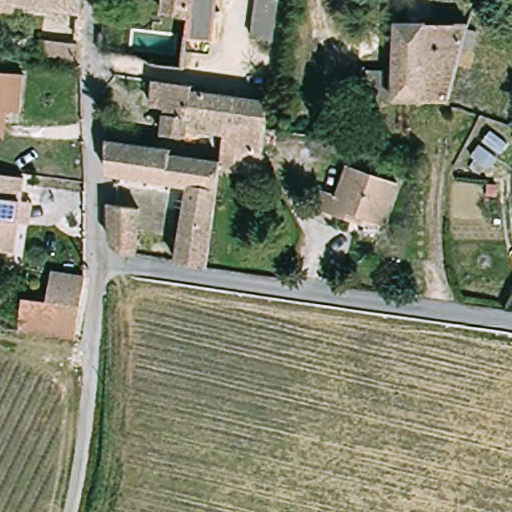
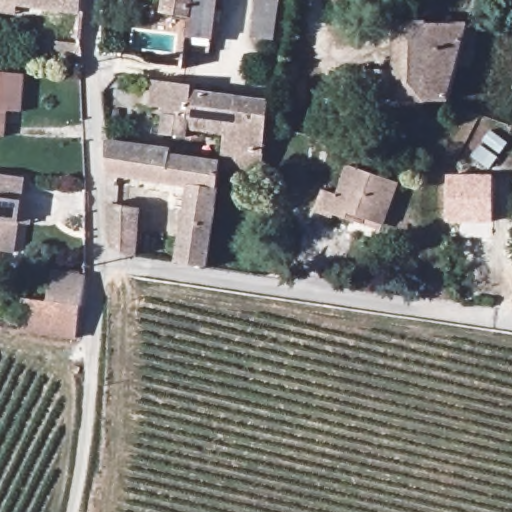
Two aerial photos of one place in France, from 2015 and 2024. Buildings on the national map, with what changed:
unchanged [(0,4),(0,0),(19,0),(19,6),(0,4)]
unchanged [(19,6),(19,0),(83,0),(82,15),(19,6)]
unchanged [(160,13),(161,0),(192,0),(189,20),(160,13)]
unchanged [(186,44),(189,20),(192,0),(216,0),(211,48),(186,44)]
unchanged [(277,0),(270,40),(250,36),(257,0),(277,0)]
unchanged [(447,101),(394,103),(395,23),(468,21),(447,101)]
unchanged [(81,64),(38,59),(39,39),(80,43),(81,64)]
unchanged [(23,71),(16,116),(3,115),(0,138),(0,68),(23,71)]
unchanged [(189,138),(189,146),(155,141),(161,114),(152,85),(191,89),(189,97),(228,103),(273,110),(269,134),(262,173),(221,166),(221,156),(222,144),(189,138)]
new [(508,143),(489,170),(470,155),(490,129),(508,143)]
unchanged [(179,237),(182,184),(102,173),(99,139),(221,156),(221,166),(207,265),(177,260),(179,237)]
unchanged [(358,214),(355,223),(317,210),(326,188),(341,193),(350,165),(400,181),(386,222),(358,214)]
new [(494,222),(448,223),(448,175),(493,174),(494,222)]
unchanged [(32,231),(14,229),(10,253),(0,252),(0,186),(19,188),(17,205),(34,207),(32,231)]
unchanged [(137,199),(135,229),(133,254),(103,251),(104,194),(137,199)]
unchanged [(133,254),(135,229),(179,237),(177,260),(133,254)]
unchanged [(53,269),(83,275),(76,308),(45,300),(53,269)]
unchanged [(71,343),(18,329),(26,297),(45,300),(76,308),(79,309),(71,343)]

